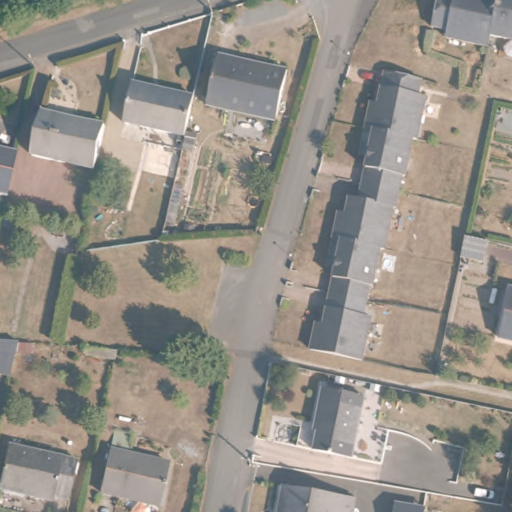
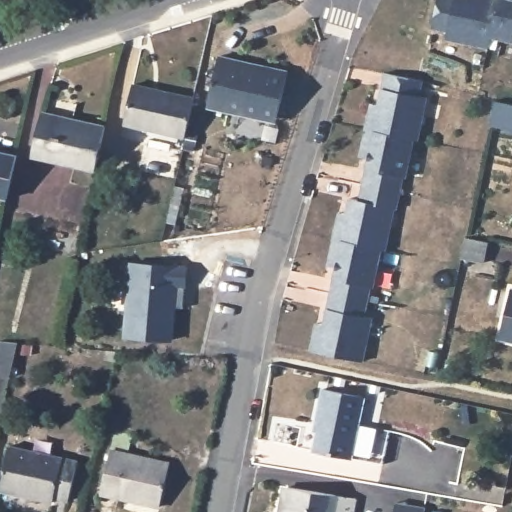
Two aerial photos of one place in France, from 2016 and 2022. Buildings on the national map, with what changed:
unchanged [(491,44),(447,34),(449,25),(433,21),(438,0),(512,0),(512,38),(492,34),(491,44)]
unchanged [(234,117),(205,111),(217,56),(285,71),(275,117),(273,126),(234,117)]
unchanged [(375,150),(367,149),(376,110),(383,112),(392,75),(428,82),(425,98),(432,100),(422,142),(418,141),(411,179),(408,178),(401,210),(400,210),(391,253),(387,252),(378,291),(376,290),(370,320),(377,322),(368,362),(317,351),(321,333),(327,335),(343,261),(336,260),(343,222),(352,224),(357,201),(364,202),(375,150)]
unchanged [(196,100),(187,139),(125,125),(134,85),(196,100)]
unchanged [(512,115),(510,126),(487,121),(491,100),(512,105),(512,115)]
unchanged [(109,129),(99,169),(69,162),(67,169),(32,161),(41,116),(109,129)]
unchanged [(12,152),(2,199),(0,199),(0,150),(12,152)]
unchanged [(480,260),(457,255),(465,234),(487,239),(480,260)]
new [(188,265),(186,287),(184,287),(182,306),(176,306),(172,340),(122,337),(129,262),(188,265)]
unchanged [(506,290),(512,292),(512,345),(495,341),(506,290)]
unchanged [(14,351),(5,388),(0,387),(0,351),(14,351)]
unchanged [(362,397),(357,425),(387,430),(381,465),(350,460),(312,452),(317,426),(313,425),(320,390),(362,397)]
unchanged [(77,461),(67,502),(52,499),(51,505),(0,492),(12,445),(77,461)]
unchanged [(168,467),(159,508),(98,495),(107,453),(168,467)]
unchanged [(352,497),(349,512),(281,512),(286,485),(352,497)]
unchanged [(422,506),(421,512),(390,512),(392,501),(422,506)]

